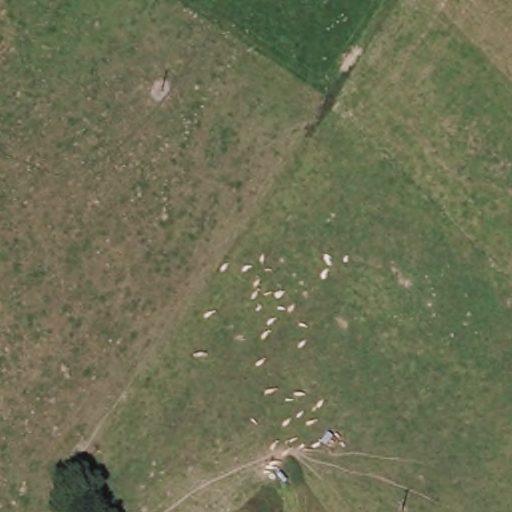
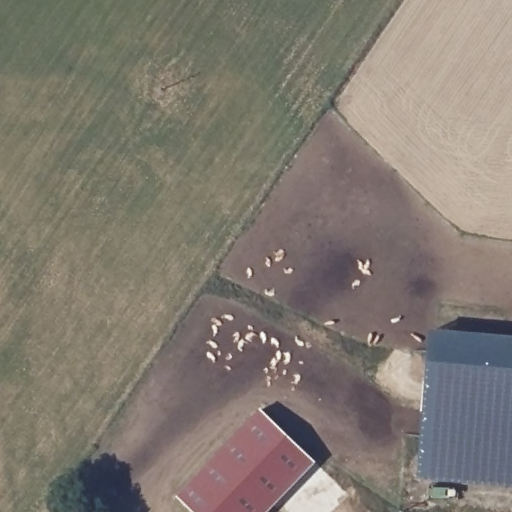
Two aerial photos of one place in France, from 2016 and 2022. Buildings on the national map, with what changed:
new [(512,337),(512,486),(417,478),(431,330),(512,337)]

